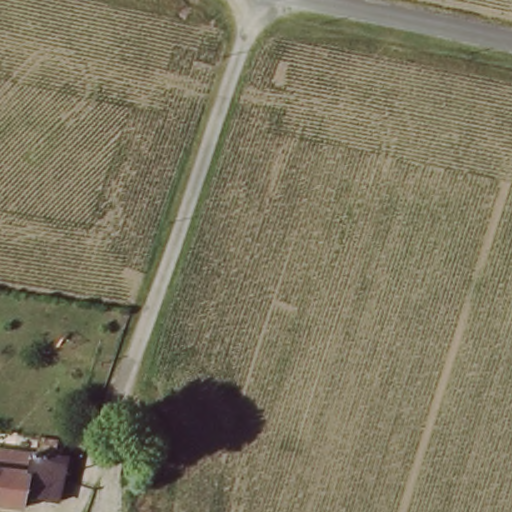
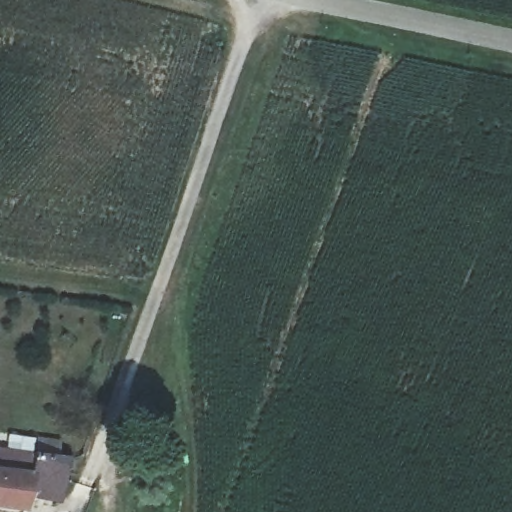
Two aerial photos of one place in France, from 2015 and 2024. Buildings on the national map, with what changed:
unchanged [(61,491),(27,487),(25,511),(0,508),(0,444),(65,453),(61,491)]

